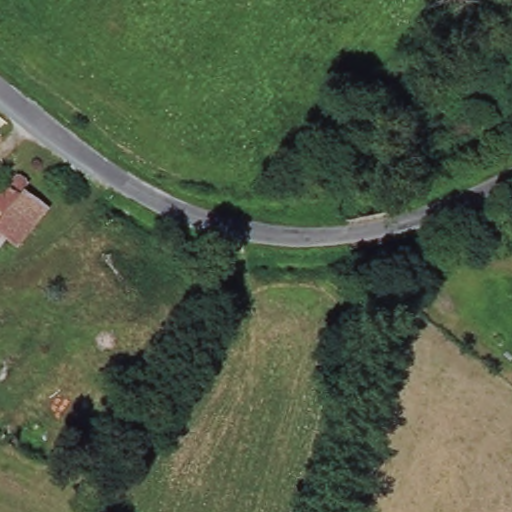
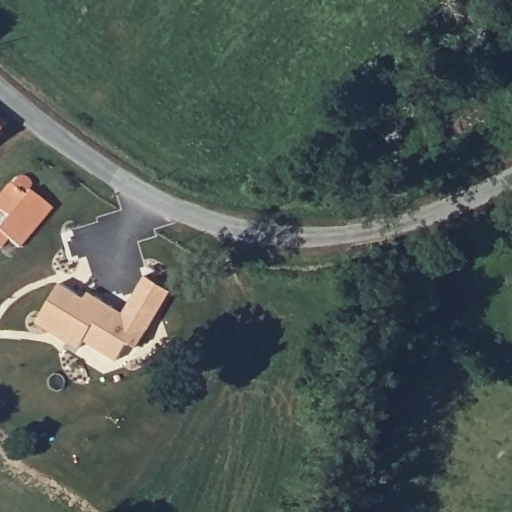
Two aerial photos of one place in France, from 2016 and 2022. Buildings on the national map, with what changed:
unchanged [(22,247),(9,252),(0,244),(0,226),(7,214),(0,207),(0,194),(11,181),(15,184),(25,172),(34,179),(29,186),(53,209),(22,247)]
new [(86,297),(90,291),(125,312),(146,273),(173,288),(140,345),(133,341),(122,359),(85,339),(80,347),(36,323),(61,282),(86,297)]

